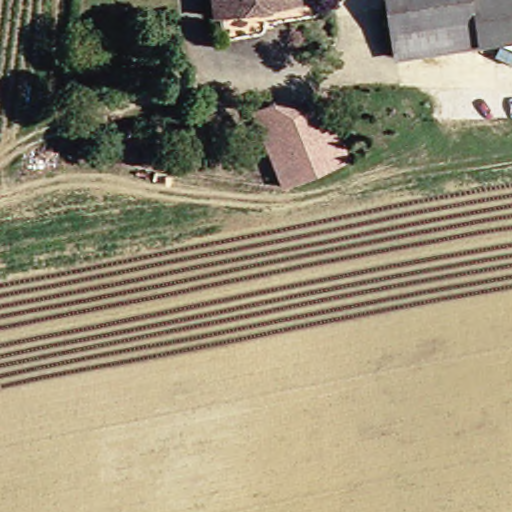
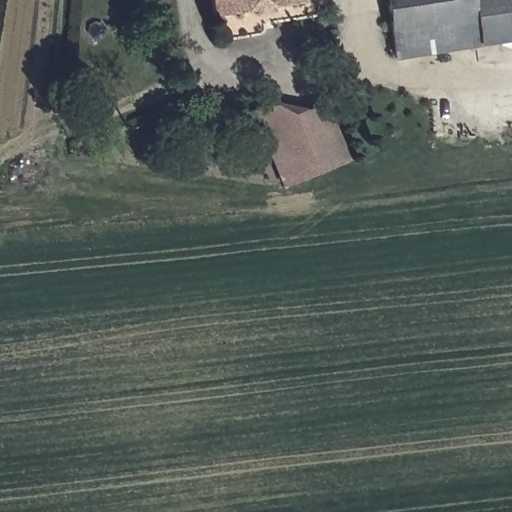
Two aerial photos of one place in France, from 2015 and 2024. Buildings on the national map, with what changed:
unchanged [(210,0),(299,0),(212,15),(210,0)]
unchanged [(487,31),(490,50),(404,66),(392,0),(512,0),(512,26),(487,31)]
unchanged [(329,99),(353,158),(310,175),(286,116),(329,99)]
unchanged [(289,184),(258,109),(279,100),(286,116),(310,175),(289,184)]

